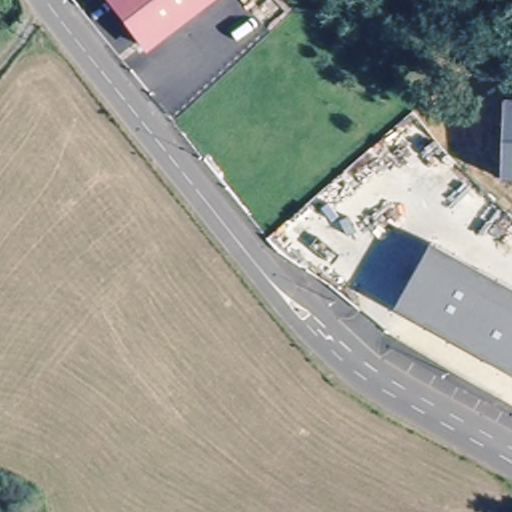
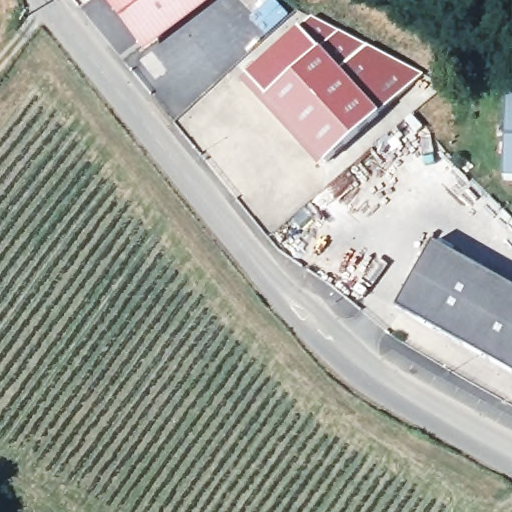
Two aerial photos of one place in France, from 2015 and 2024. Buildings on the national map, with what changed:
unchanged [(107,0),(198,0),(140,45),(107,0)]
new [(319,49),(298,27),(313,17),(421,74),(378,112),(319,49)]
new [(264,99),(244,75),(298,27),(319,49),(378,112),(322,162),(264,99)]
unchanged [(512,179),(504,179),(506,98),(512,98),(512,179)]
unchanged [(512,288),(512,374),(396,311),(431,242),(512,288)]

